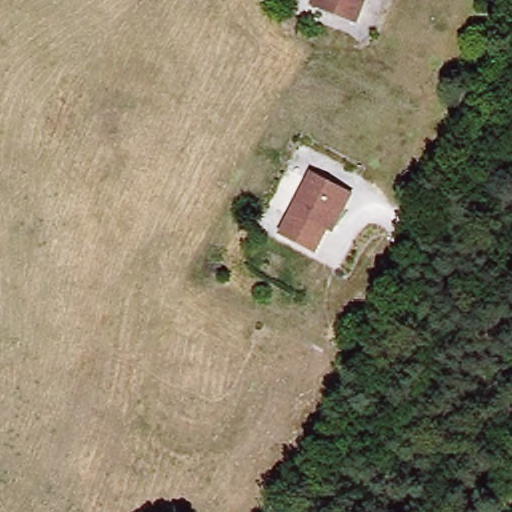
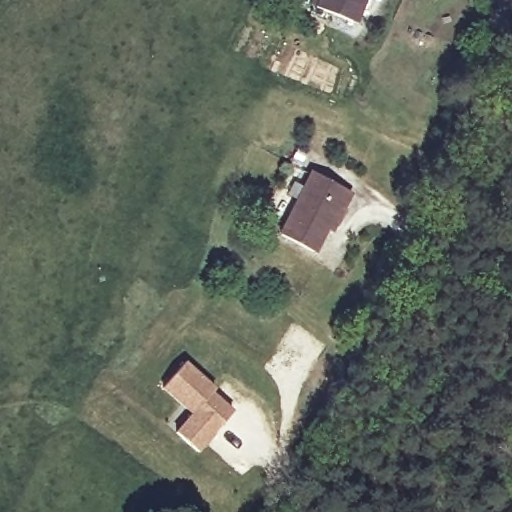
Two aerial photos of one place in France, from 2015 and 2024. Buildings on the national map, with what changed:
unchanged [(312,5),(314,0),(366,0),(355,25),(312,5)]
unchanged [(315,250),(280,235),(308,172),(349,191),(341,207),(337,205),(315,250)]
new [(217,386),(212,391),(235,410),(199,453),(175,432),(190,413),(162,389),(186,361),(217,386)]

